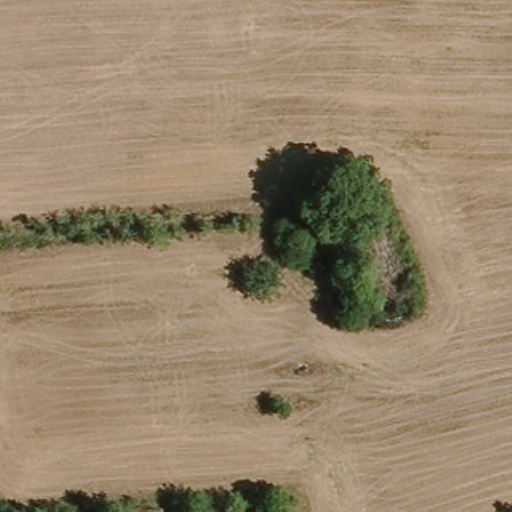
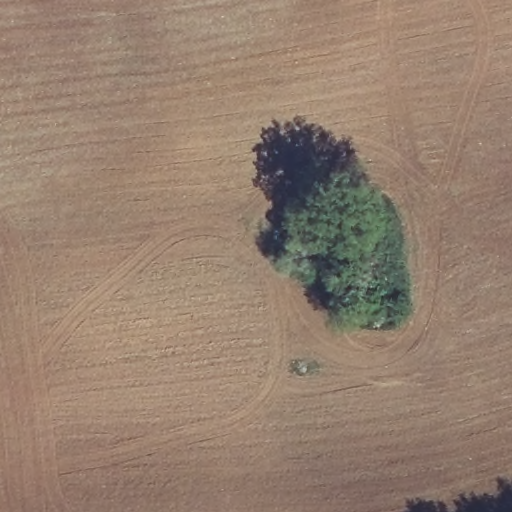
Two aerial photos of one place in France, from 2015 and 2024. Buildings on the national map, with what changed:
unchanged [(333,321),(330,306),(357,302),(359,317),(333,321)]

